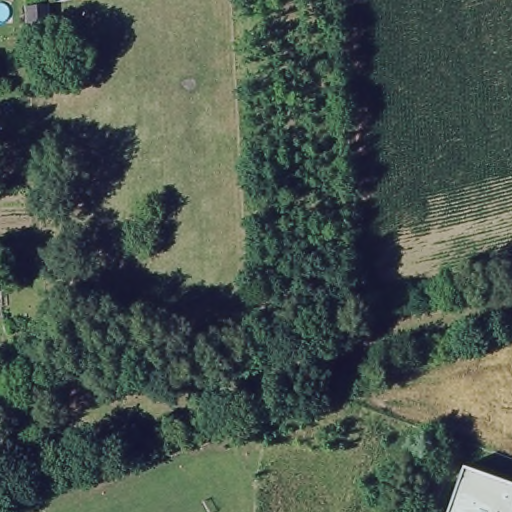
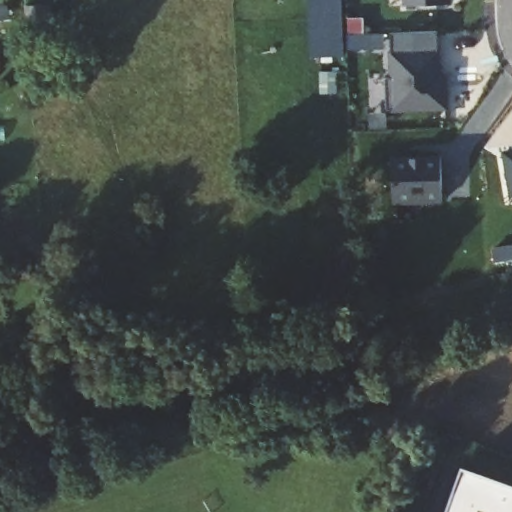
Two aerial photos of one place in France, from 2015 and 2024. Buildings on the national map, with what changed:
unchanged [(50,42),(27,43),(24,0),(46,0),(50,42)]
new [(347,52),(321,53),(319,0),(345,0),(347,52)]
new [(447,3),(402,3),(402,0),(447,0),(447,3)]
new [(443,74),(444,86),(444,106),(386,108),(385,76),(391,76),(390,30),(436,30),(438,87),(438,74),(443,74)]
new [(505,150),(512,149),(512,195),(505,150)]
new [(441,154),(443,198),(393,199),(392,155),(441,154)]
unchanged [(512,482),(512,503),(509,512),(445,512),(462,464),(512,482)]

